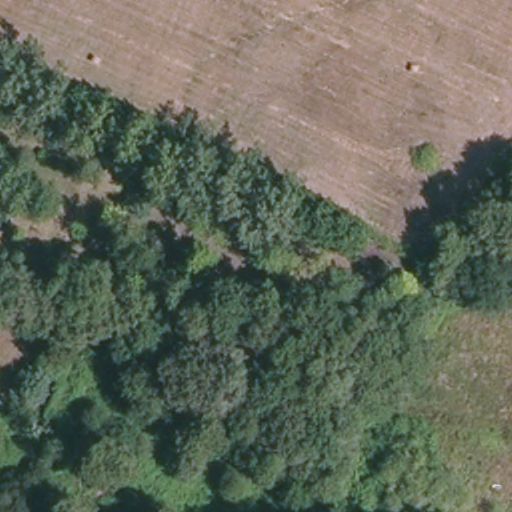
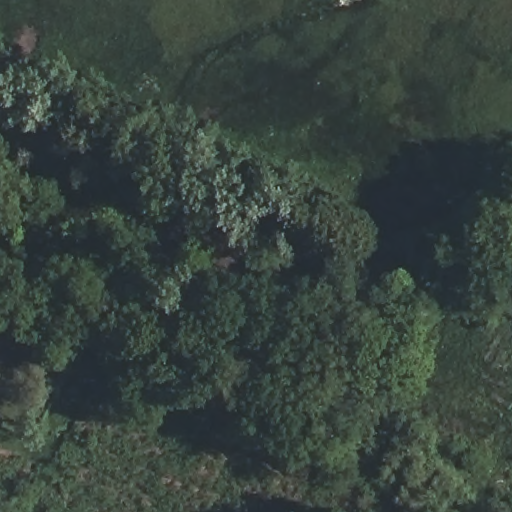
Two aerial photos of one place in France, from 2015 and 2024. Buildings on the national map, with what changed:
[]

